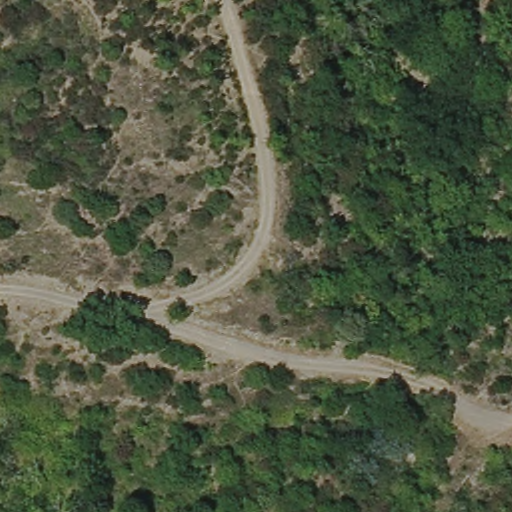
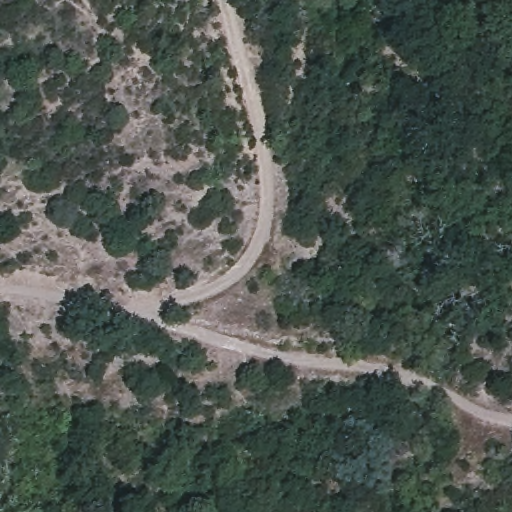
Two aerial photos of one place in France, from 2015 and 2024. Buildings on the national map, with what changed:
[]

